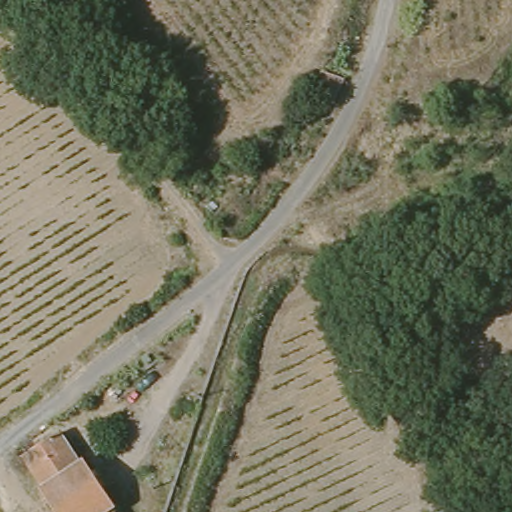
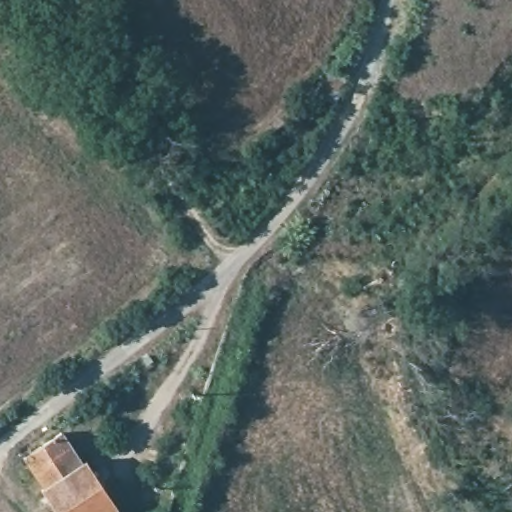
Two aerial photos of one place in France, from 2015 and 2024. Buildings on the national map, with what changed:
unchanged [(333,107),(313,95),(326,69),(349,82),(333,107)]
unchanged [(23,464),(18,457),(57,433),(78,467),(83,465),(110,508),(107,511),(108,512),(46,512),(34,493),(40,490),(23,464)]

